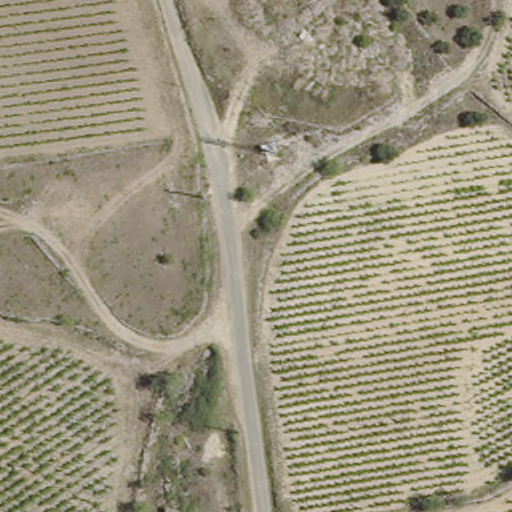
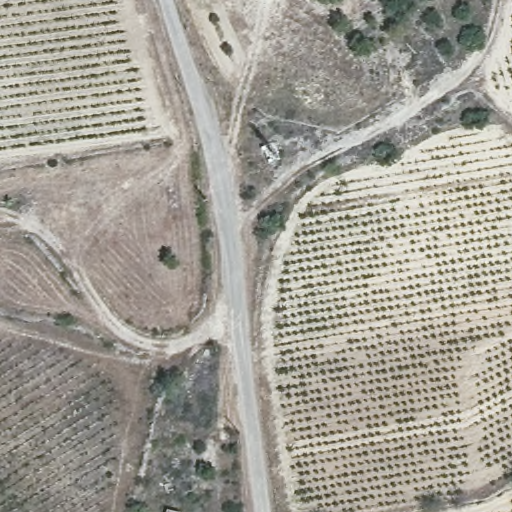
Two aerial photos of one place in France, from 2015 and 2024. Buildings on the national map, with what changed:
unchanged [(162,512),(163,510),(171,512),(162,512)]

